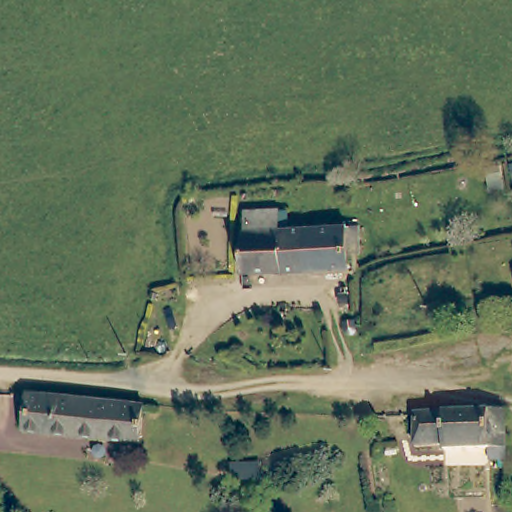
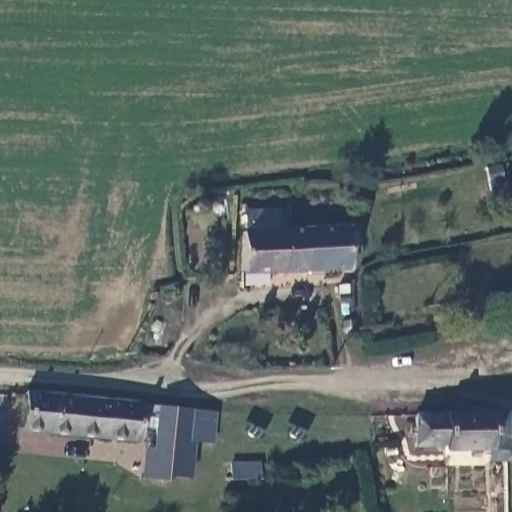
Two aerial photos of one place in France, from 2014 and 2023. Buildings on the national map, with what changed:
unchanged [(239,228),(242,228),(242,209),(276,208),(276,209),(286,210),(285,228),(303,228),(305,271),(240,272),(239,228)]
unchanged [(305,271),(303,228),(346,228),(359,228),(359,257),(347,257),(348,271),(305,271)]
unchanged [(52,430),(21,427),(25,391),(55,393),(144,401),(139,441),(52,430)]
new [(213,444),(195,442),(191,478),(173,478),(164,482),(140,478),(144,448),(151,449),(157,406),(217,412),(213,444)]
unchanged [(485,460),(485,450),(447,451),(446,446),(420,446),(410,446),(410,434),(407,434),(407,420),(411,420),(411,413),(501,412),(501,448),(501,460),(485,460)]
unchanged [(254,467),(254,481),(227,483),(227,468),(254,467)]

